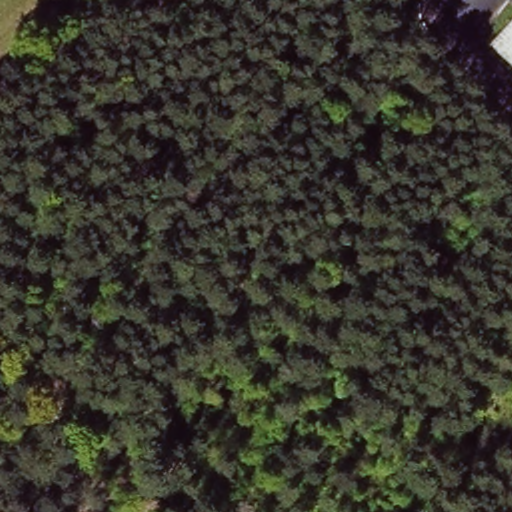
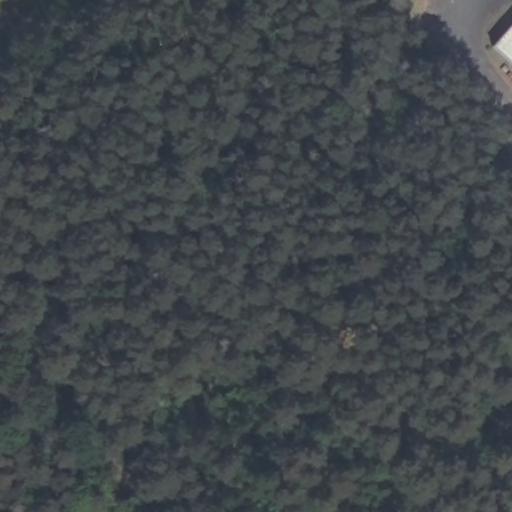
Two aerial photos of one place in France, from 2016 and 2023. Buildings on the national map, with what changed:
unchanged [(512,18),(512,63),(490,42),(512,18)]

